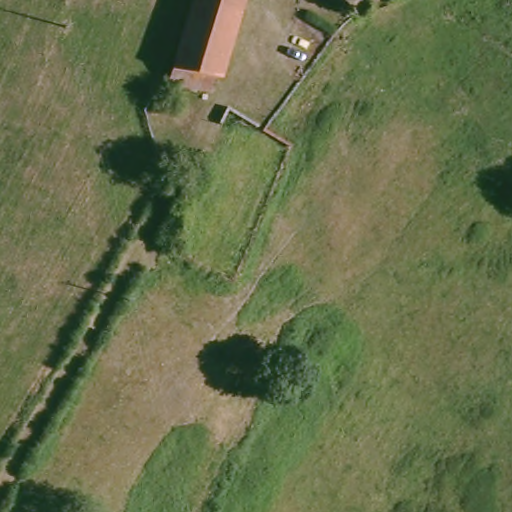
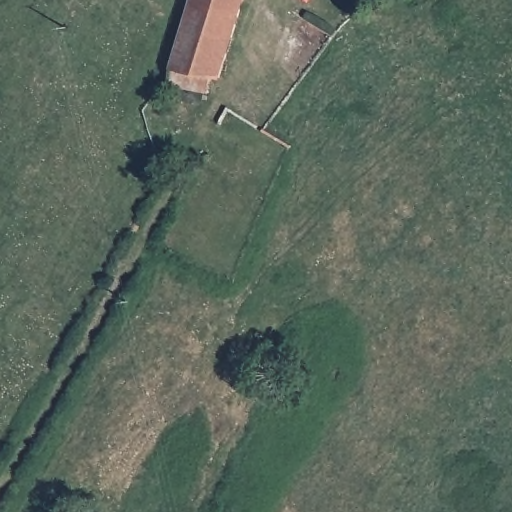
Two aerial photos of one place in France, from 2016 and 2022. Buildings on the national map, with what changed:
unchanged [(187,1),(187,0),(238,0),(234,14),(187,1)]
unchanged [(214,81),(205,81),(202,95),(162,84),(187,1),(234,14),(214,81)]

